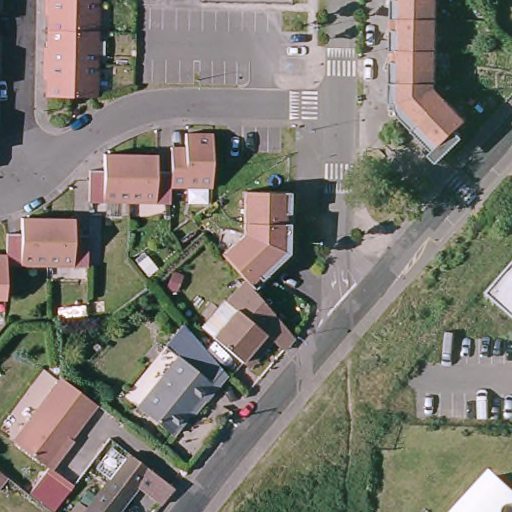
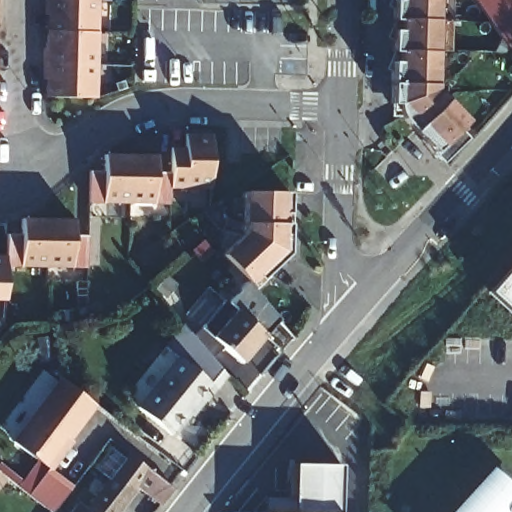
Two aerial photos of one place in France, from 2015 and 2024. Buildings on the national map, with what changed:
unchanged [(42,26),(42,7),(39,7),(39,0),(92,0),(92,28),(42,26)]
unchanged [(426,144),(402,119),(399,114),(397,110),(395,104),(395,98),(389,97),(390,55),(390,45),(391,24),(391,14),(391,0),(437,0),(434,82),(429,82),(428,88),(440,101),(444,97),(465,119),(455,128),(458,131),(443,145),(440,142),(432,150),(426,144)]
unchanged [(38,60),(38,47),(41,47),(41,38),(42,26),(92,28),(91,61),(38,60)]
unchanged [(59,89),(40,89),(41,72),(37,72),(38,60),(91,61),(90,90),(59,89)]
unchanged [(212,118),(211,158),(211,172),(170,172),(170,179),(171,196),(127,196),(89,196),(89,165),(103,164),(103,159),(103,148),(156,148),(156,164),(170,164),(170,140),(184,140),(184,118),(212,118)]
unchanged [(241,274),(219,249),(241,230),(243,186),(287,187),(286,213),(286,248),(241,274)]
unchanged [(5,252),(6,228),(20,229),(21,213),(23,213),(74,215),(73,229),(73,231),(87,231),(85,263),(48,261),(5,260),(5,252)]
unchanged [(5,260),(4,292),(0,292),(0,252),(5,252),(5,260)]
unchanged [(488,292),(512,264),(512,314),(488,292)]
unchanged [(263,328),(260,325),(249,337),(252,341),(227,370),(225,368),(193,331),(223,296),(225,297),(243,275),(276,313),(263,328)]
unchanged [(282,345),(269,334),(233,377),(227,370),(252,341),(249,337),(260,325),(263,328),(276,313),(284,322),(293,332),(282,345)]
unchanged [(176,355),(159,343),(180,316),(182,318),(193,331),(225,368),(206,394),(202,391),(173,430),(139,404),(176,355)]
unchanged [(93,402),(48,461),(13,435),(58,375),(93,402)]
unchanged [(133,481),(109,512),(102,512),(84,500),(114,462),(123,450),(124,449),(169,484),(157,500),(133,481)]
new [(341,467),(341,512),(295,512),(294,466),(341,467)]
unchanged [(0,484),(0,473),(5,477),(0,484)]
unchanged [(481,492),(496,475),(512,490),(512,512),(455,512),(477,488),(481,492)]
unchanged [(63,512),(74,497),(82,503),(84,500),(102,512),(63,512)]

